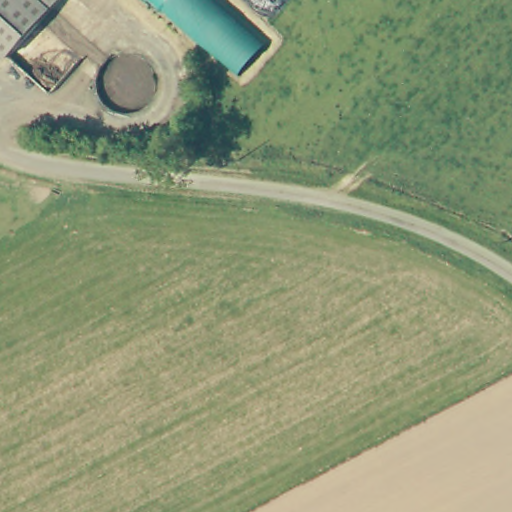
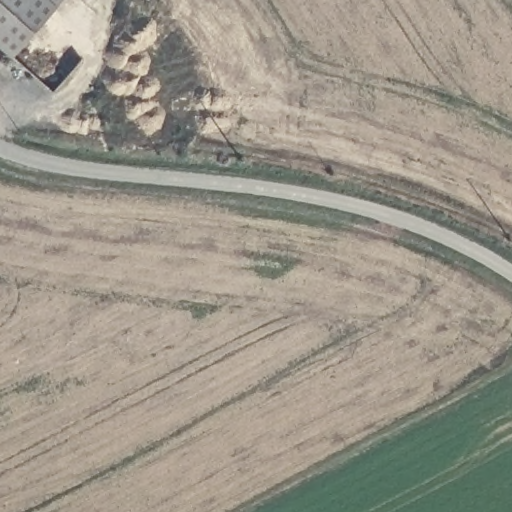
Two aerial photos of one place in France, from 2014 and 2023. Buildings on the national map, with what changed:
unchanged [(0,43),(0,0),(56,0),(9,52),(0,43)]
new [(154,0),(220,0),(269,43),(238,76),(154,0)]

